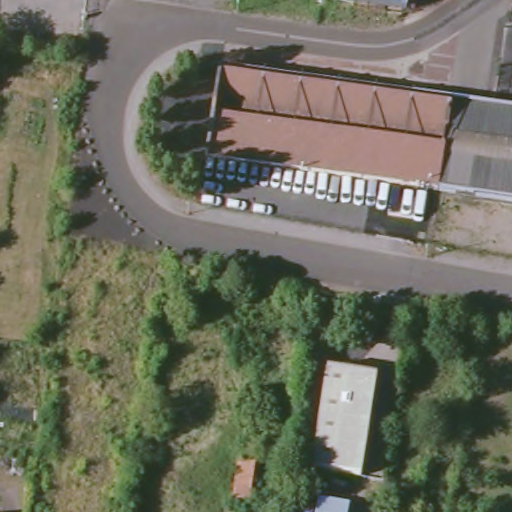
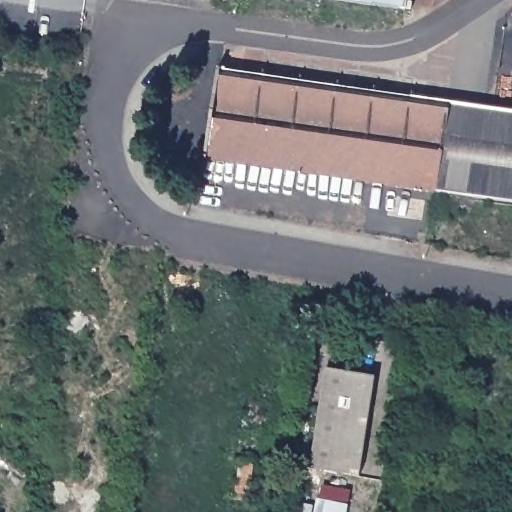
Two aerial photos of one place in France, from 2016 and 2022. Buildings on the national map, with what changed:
unchanged [(412,8),(350,0),(413,0),(412,8)]
unchanged [(438,190),(204,157),(218,69),(450,102),(449,104),(438,190)]
unchanged [(449,104),(512,113),(512,201),(438,190),(449,104)]
unchanged [(361,473),(314,465),(329,367),(377,375),(361,473)]
unchanged [(314,507),(316,496),(348,501),(346,512),(290,512),(291,501),(314,507)]

